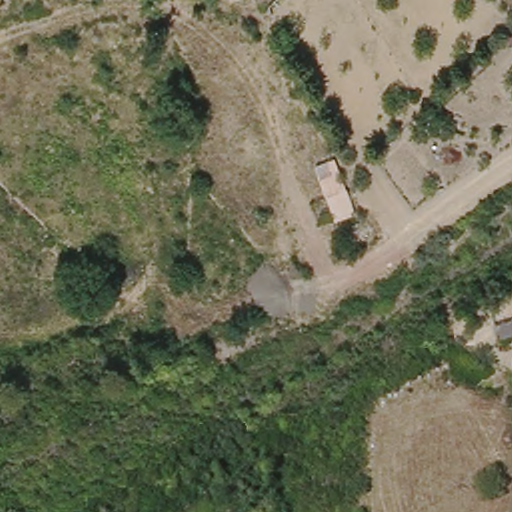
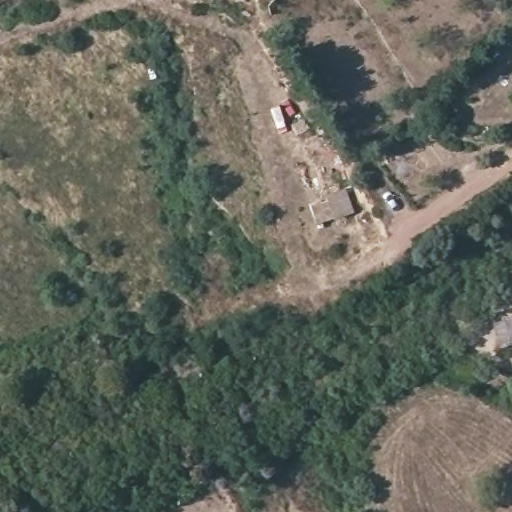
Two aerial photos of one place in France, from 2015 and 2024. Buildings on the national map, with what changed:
unchanged [(336,157),(357,215),(334,223),(313,165),(336,157)]

